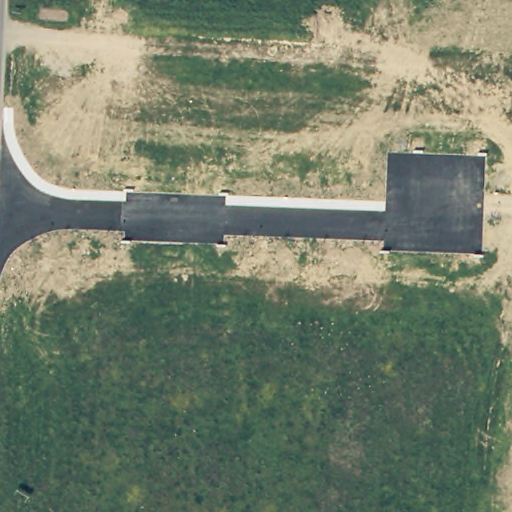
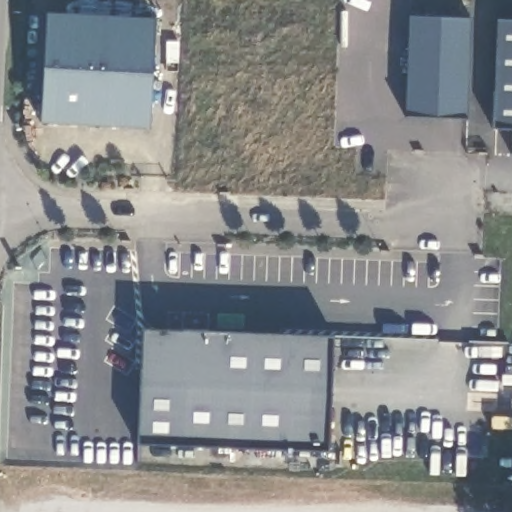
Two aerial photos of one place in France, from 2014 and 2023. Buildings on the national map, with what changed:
new [(156,17),(150,129),(40,123),(45,11),(156,17)]
new [(405,115),(409,13),(471,15),(466,118),(405,115)]
new [(512,19),(512,128),(493,127),(497,18),(512,19)]
new [(333,335),(329,451),(137,444),(141,328),(333,335)]

